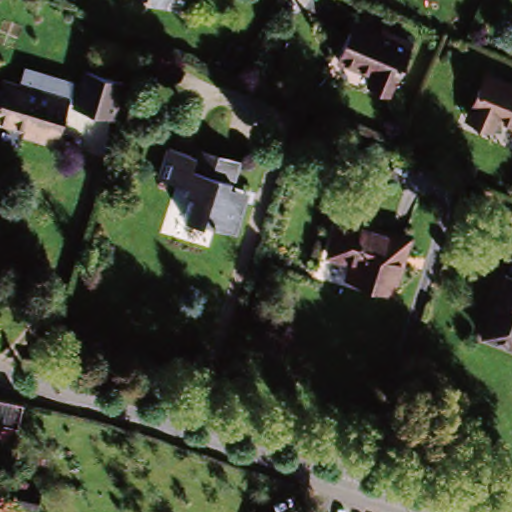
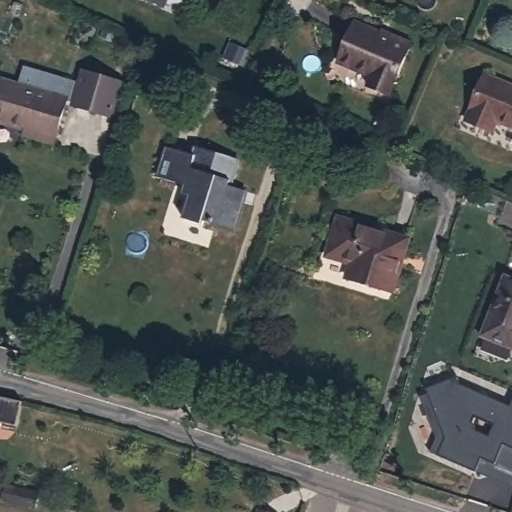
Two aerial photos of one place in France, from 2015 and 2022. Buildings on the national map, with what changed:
unchanged [(160,4),(150,0),(162,0),(160,4)]
unchanged [(386,33),(387,31),(406,40),(382,91),(361,82),(365,72),(331,56),(349,16),(386,33)]
unchanged [(33,62),(85,81),(90,68),(129,83),(117,117),(78,102),(79,99),(73,96),(73,95),(28,79),(33,62)]
unchanged [(460,112),(463,108),(481,67),(512,81),(512,122),(492,113),(488,120),(486,124),(460,112)]
unchanged [(30,124),(0,114),(0,97),(8,73),(28,79),(73,95),(73,96),(58,133),(55,140),(27,131),(30,124)]
unchanged [(244,198),(234,229),(214,222),(216,220),(208,217),(206,222),(182,215),(189,192),(181,189),(183,181),(158,174),(166,144),(192,152),(194,143),(236,156),(228,181),(247,188),(244,198)]
unchanged [(338,220),(407,241),(393,293),(346,279),(351,264),(328,257),(338,220)]
unchanged [(499,275),(512,280),(512,347),(477,333),(499,275)]
new [(462,385),(512,405),(512,450),(505,447),(497,465),(484,458),(477,473),(432,453),(439,437),(419,391),(458,375),(462,385)]
unchanged [(17,423),(0,420),(0,401),(21,405),(17,423)]
unchanged [(39,493),(35,511),(1,502),(5,484),(28,490),(39,493)]
unchanged [(280,510),(279,512),(254,512),(259,502),(280,510)]

